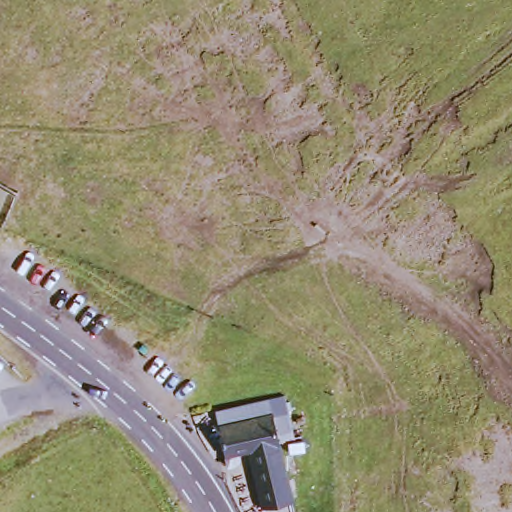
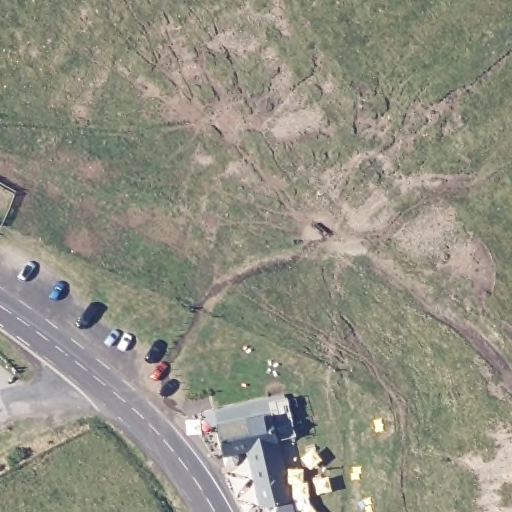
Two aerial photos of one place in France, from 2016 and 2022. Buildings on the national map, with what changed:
unchanged [(291,434),(280,435),(293,501),(262,506),(253,455),(230,458),(220,444),(216,411),(286,400),(291,434)]

